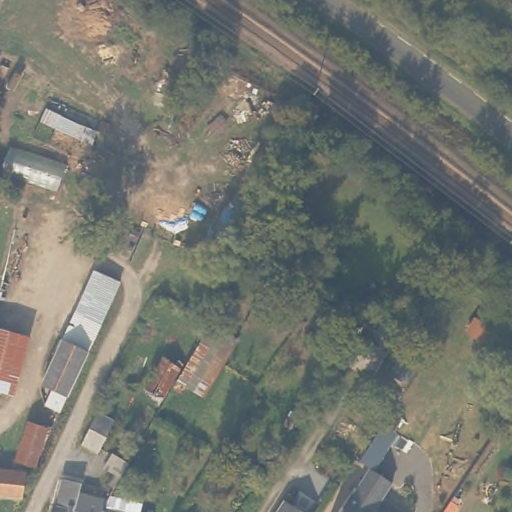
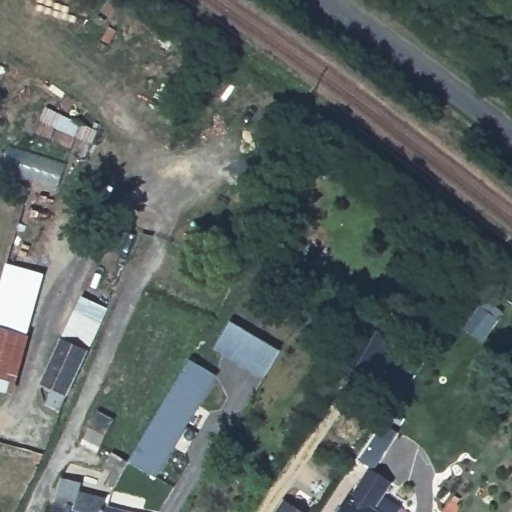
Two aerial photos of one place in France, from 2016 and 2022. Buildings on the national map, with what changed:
new [(12,395),(0,391),(0,289),(7,263),(46,273),(12,395)]
new [(82,296),(109,307),(91,348),(86,347),(87,345),(62,333),(82,296)]
new [(262,378),(215,349),(230,320),(280,350),(262,378)]
unchanged [(69,384),(60,405),(45,399),(51,385),(40,380),(62,333),(87,345),(69,384)]
unchanged [(402,340),(416,349),(412,356),(401,373),(387,365),(402,340)]
new [(155,477),(130,461),(190,359),(216,375),(155,477)]
unchanged [(112,420),(97,450),(81,443),(95,412),(112,420)]
unchanged [(113,486),(108,484),(113,473),(104,468),(110,454),(127,462),(113,486)]
demolished [(21,491),(0,488),(0,463),(24,466),(21,491)]
unchanged [(350,490),(354,493),(372,465),(385,473),(361,512),(337,512),(350,490)]
unchanged [(392,479),(375,507),(382,512),(361,512),(385,473),(392,479)]
unchanged [(52,503),(54,504),(61,477),(81,482),(78,491),(106,499),(105,503),(103,512),(50,512),(52,503)]
unchanged [(282,497),(307,512),(273,512),(282,497)]
unchanged [(105,503),(138,512),(103,512),(105,503)]

